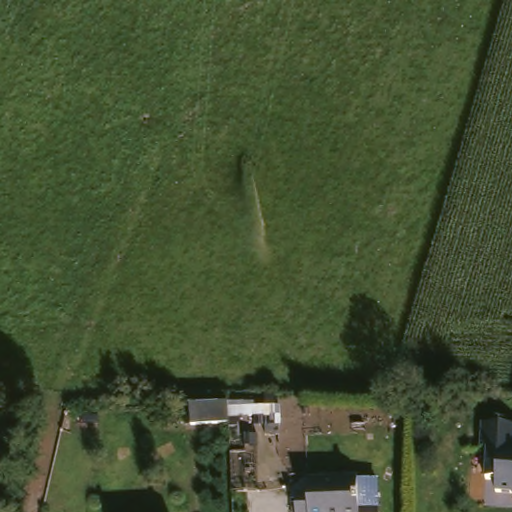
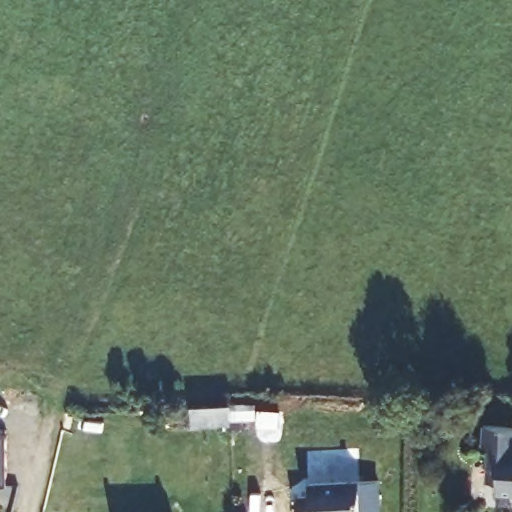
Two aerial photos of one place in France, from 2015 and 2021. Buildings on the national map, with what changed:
unchanged [(258,404),(259,420),(232,420),(233,428),(195,430),(194,406),(232,405),(258,404)]
unchanged [(495,495),(496,483),(485,482),(487,452),(481,451),(482,428),(512,430),(512,496),(495,495)]
new [(7,485),(0,485),(0,436),(6,435),(7,485)]
unchanged [(314,495),(315,482),(365,483),(365,512),(301,512),(301,495),(314,495)]

